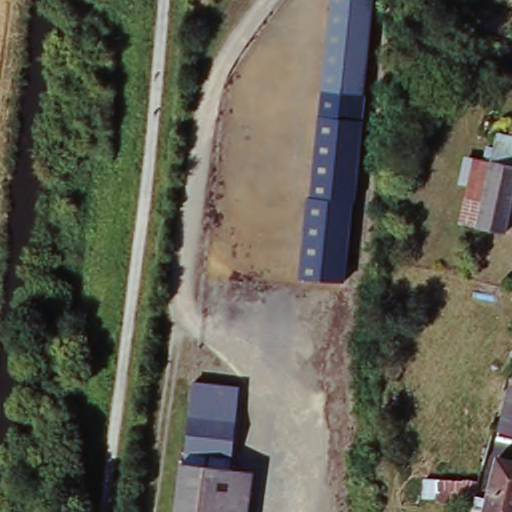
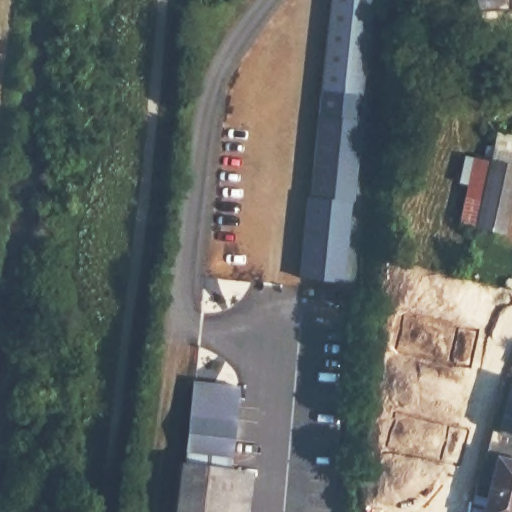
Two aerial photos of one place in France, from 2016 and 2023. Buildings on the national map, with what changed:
unchanged [(366,94),(326,90),(335,0),(371,0),(366,94)]
unchanged [(362,116),(345,279),(306,276),(319,112),(362,116)]
unchanged [(476,226),(461,223),(474,159),(491,163),(497,134),(506,136),(512,137),(512,201),(506,233),(479,227),(476,226)]
unchanged [(191,376),(241,380),(233,470),(252,471),(248,512),(177,512),(183,459),(191,376)]
unchanged [(512,429),(501,426),(512,385),(512,429)]
unchanged [(493,495),(504,453),(512,455),(512,512),(476,512),(478,497),(479,492),(493,495)]
unchanged [(428,492),(431,475),(443,476),(442,492),(428,492)]

